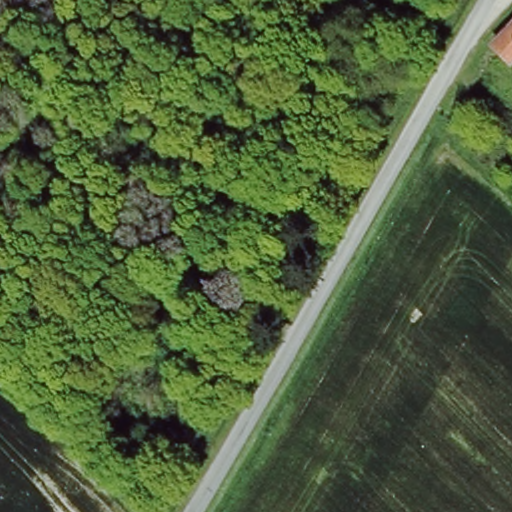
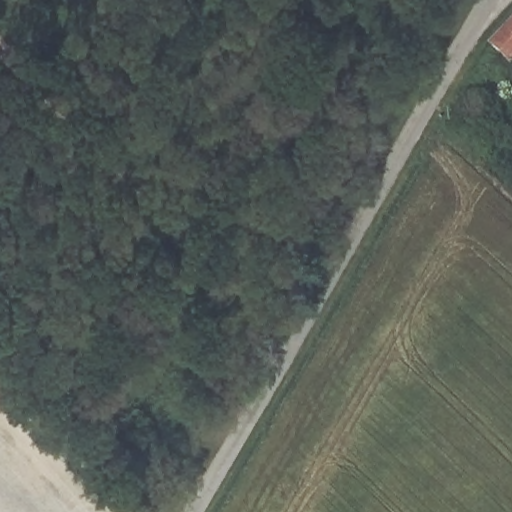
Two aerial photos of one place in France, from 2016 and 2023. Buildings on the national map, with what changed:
unchanged [(512,63),(505,70),(486,48),(512,20),(512,63)]

